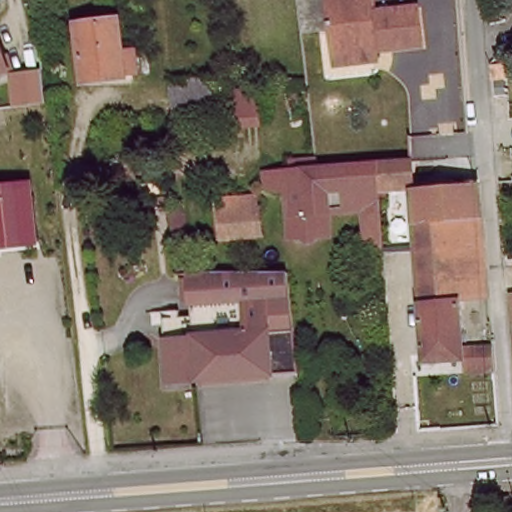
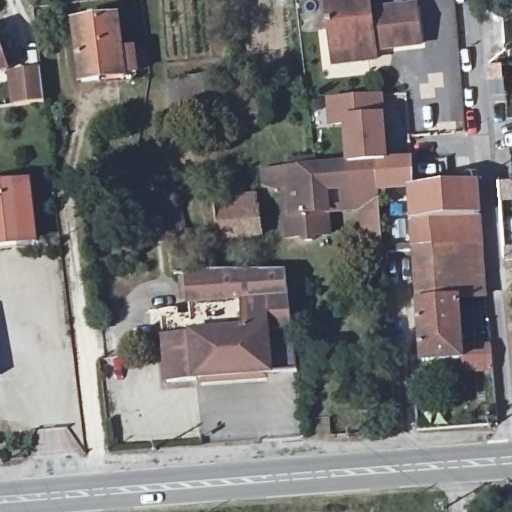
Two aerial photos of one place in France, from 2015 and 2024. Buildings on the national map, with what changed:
unchanged [(333,56),(330,0),(370,0),(372,16),(418,13),(421,51),(384,54),(383,48),(374,49),(375,64),(355,66),(334,67),(333,56)]
unchanged [(75,25),(117,21),(125,80),(83,85),(75,25)]
unchanged [(9,70),(0,72),(0,41),(9,70)]
unchanged [(45,68),(50,101),(18,105),(13,72),(45,68)]
unchanged [(176,83),(212,78),(214,98),(217,110),(180,116),(178,103),(176,83)]
new [(366,161),(346,163),(343,96),(380,95),(383,161),(366,161)]
new [(329,125),(328,96),(343,96),(344,124),(329,125)]
unchanged [(377,169),(407,166),(410,192),(379,194),(382,247),(382,248),(365,250),(363,217),(328,219),(330,258),(284,262),(281,233),(218,237),(216,201),(266,199),(266,175),(314,171),(348,169),(363,168),(377,169)]
unchanged [(463,378),(462,364),(424,366),(422,355),(410,192),(476,186),(485,300),(458,302),(461,352),(489,349),(492,374),(463,378)]
unchanged [(24,189),(31,243),(0,247),(0,191),(24,189)]
unchanged [(512,247),(512,320),(506,248),(512,247)]
unchanged [(261,377),(167,384),(161,319),(191,317),(189,280),(287,274),(297,375),(261,377)]
unchanged [(178,436),(187,435),(188,445),(179,445),(178,436)]

